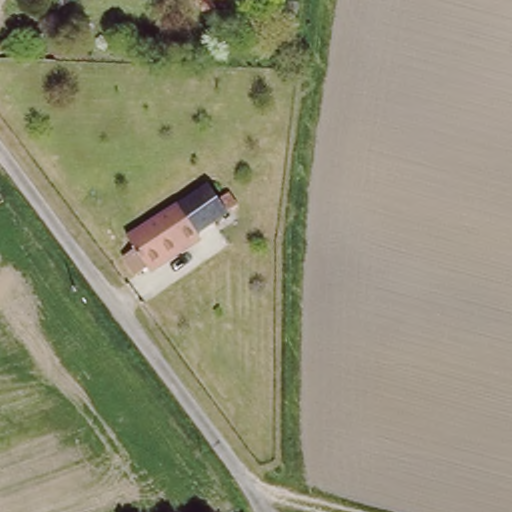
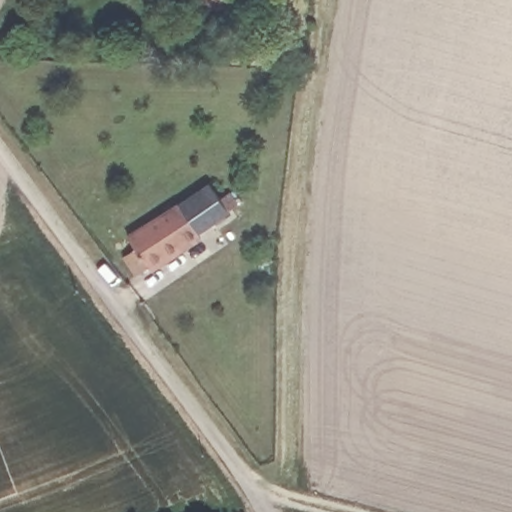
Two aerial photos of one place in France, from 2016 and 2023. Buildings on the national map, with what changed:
unchanged [(198,4),(197,0),(220,0),(198,4)]
unchanged [(124,252),(134,245),(128,235),(208,180),(219,197),(233,189),(241,201),(228,210),(136,271),(124,252)]

